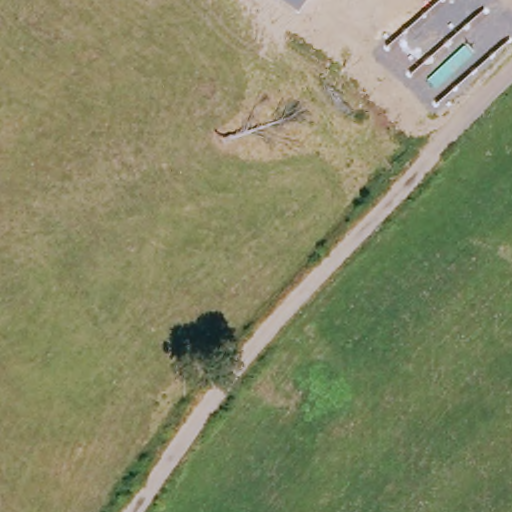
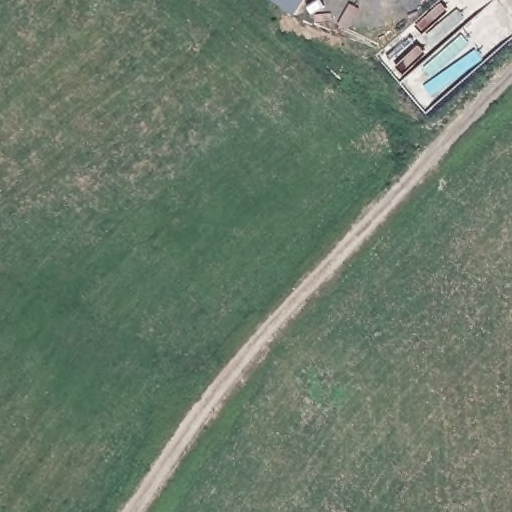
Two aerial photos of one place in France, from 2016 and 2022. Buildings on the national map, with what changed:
unchanged [(296,13),(278,0),(305,0),(296,13)]

